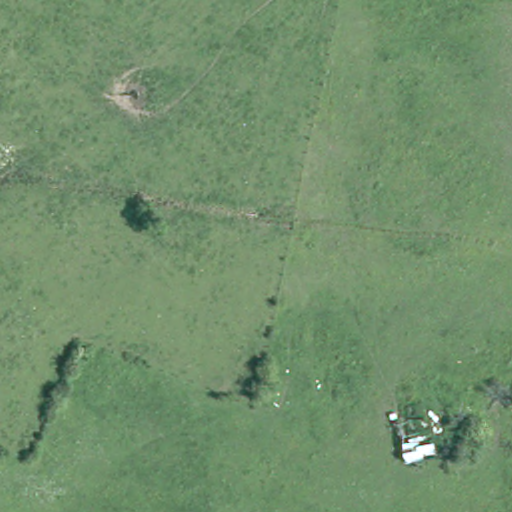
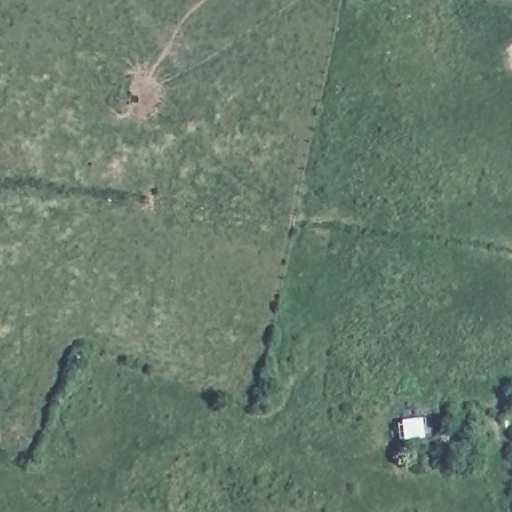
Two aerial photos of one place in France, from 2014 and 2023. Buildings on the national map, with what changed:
unchanged [(406,463),(398,419),(430,409),(442,456),(406,463)]

